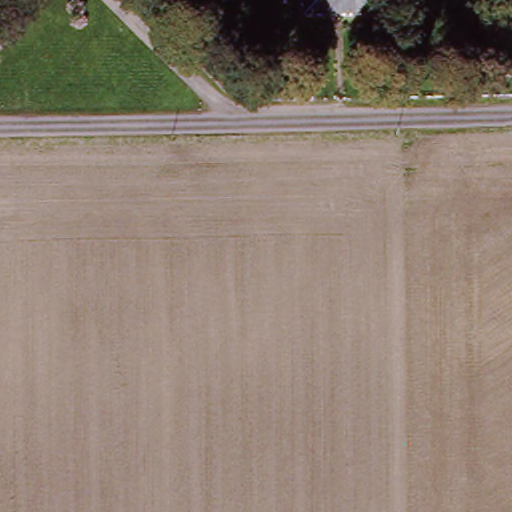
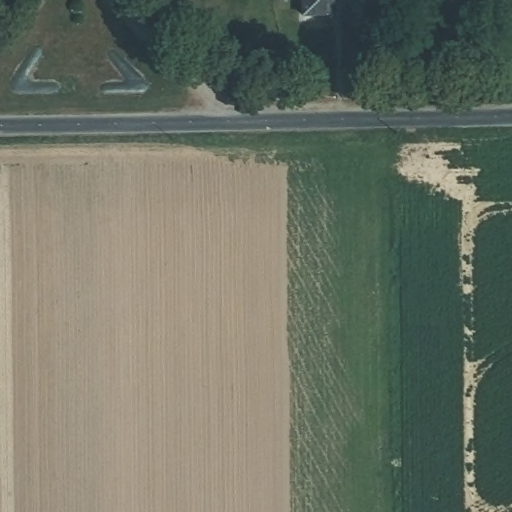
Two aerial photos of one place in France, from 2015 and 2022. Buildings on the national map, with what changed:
unchanged [(374,17),(301,20),(299,0),(374,0),(374,17)]

